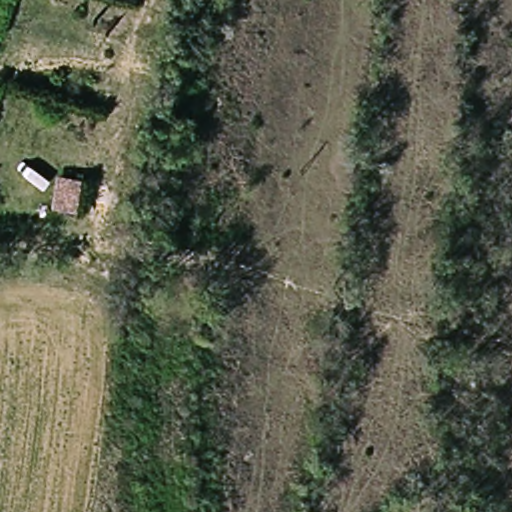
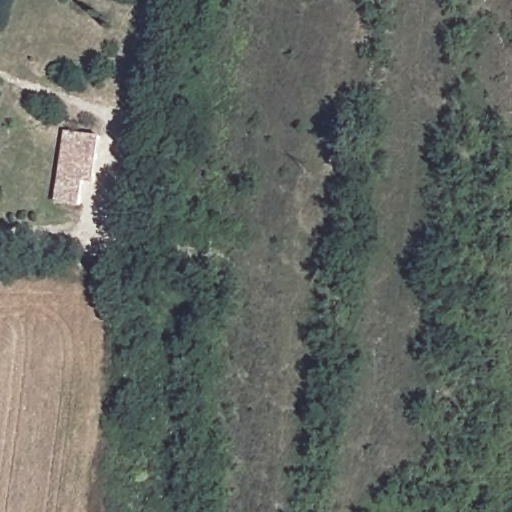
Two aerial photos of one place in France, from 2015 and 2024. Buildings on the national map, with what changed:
new [(65,131),(101,136),(93,182),(84,181),(79,207),(55,203),(65,131)]

